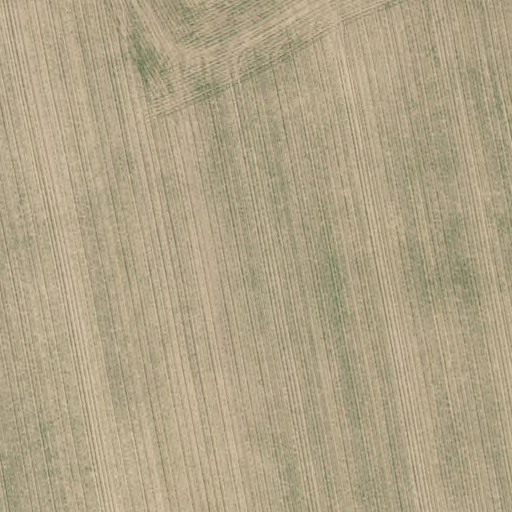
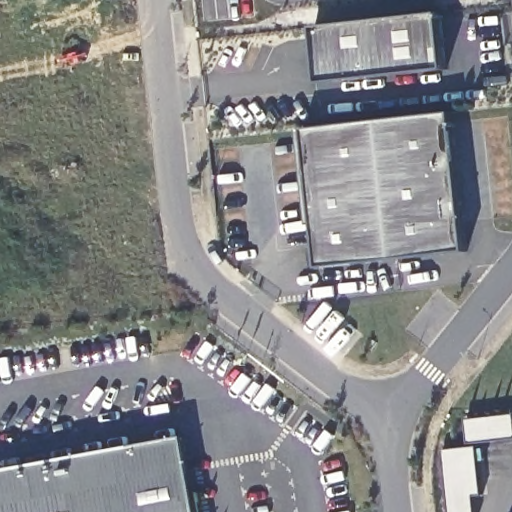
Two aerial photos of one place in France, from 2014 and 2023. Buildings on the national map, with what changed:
new [(439,14),(445,70),(322,84),(314,29),(439,14)]
new [(451,114),(466,253),(320,269),(304,130),(451,114)]
new [(512,440),(471,444),(468,420),(512,415),(512,440)]
new [(197,512),(0,512),(0,472),(184,439),(197,512)]
new [(481,495),(473,495),(475,512),(452,512),(445,451),(475,447),(481,495)]

